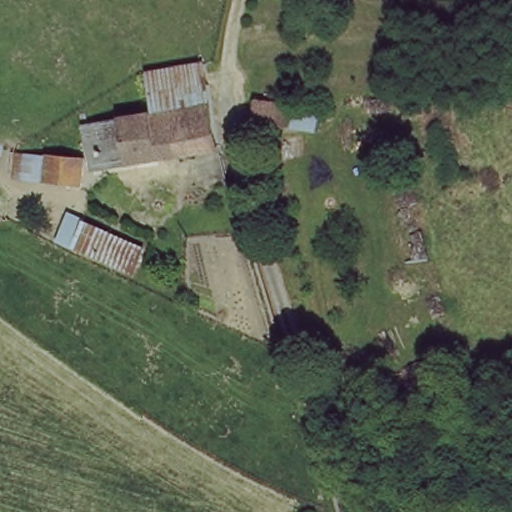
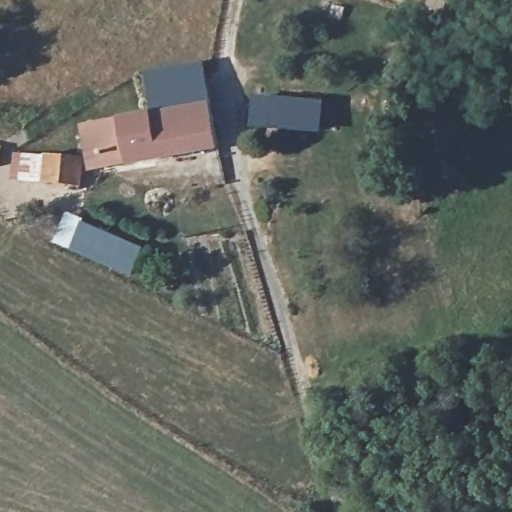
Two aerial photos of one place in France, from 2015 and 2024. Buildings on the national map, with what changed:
unchanged [(219,155),(104,175),(97,126),(151,114),(145,73),(203,65),(219,155)]
new [(321,134),(250,128),(253,95),(324,100),(321,134)]
unchanged [(85,163),(83,197),(15,188),(15,158),(85,163)]
unchanged [(145,249),(130,276),(54,246),(68,219),(145,249)]

